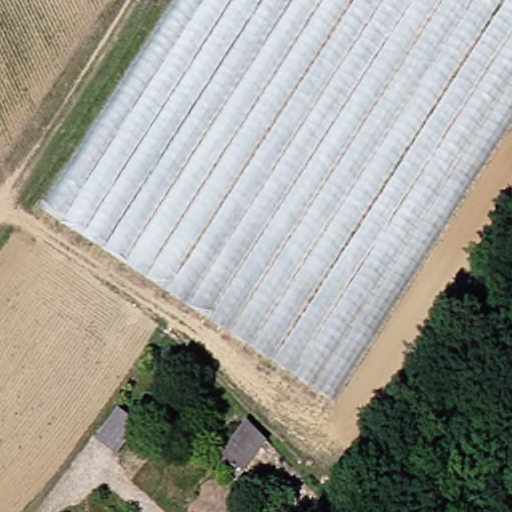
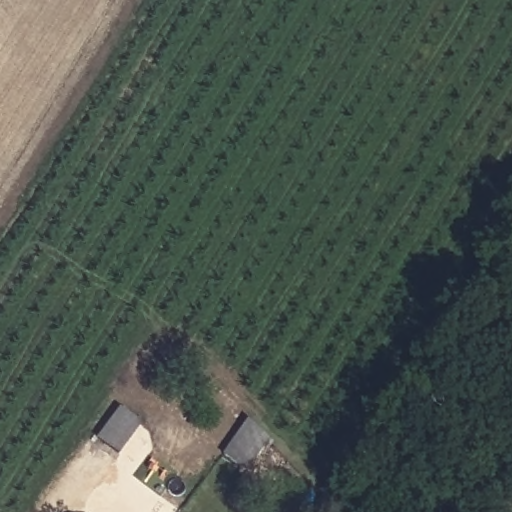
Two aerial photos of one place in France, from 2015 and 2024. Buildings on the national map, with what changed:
new [(44,209),(178,0),(512,0),(512,121),(332,402),(44,209)]
unchanged [(115,452),(97,440),(117,408),(137,422),(115,452)]
unchanged [(267,444),(242,470),(225,455),(250,426),(267,444)]
unchanged [(318,512),(291,512),(283,503),(291,495),(277,482),(290,471),(302,483),(315,497),(324,507),(318,512)]

